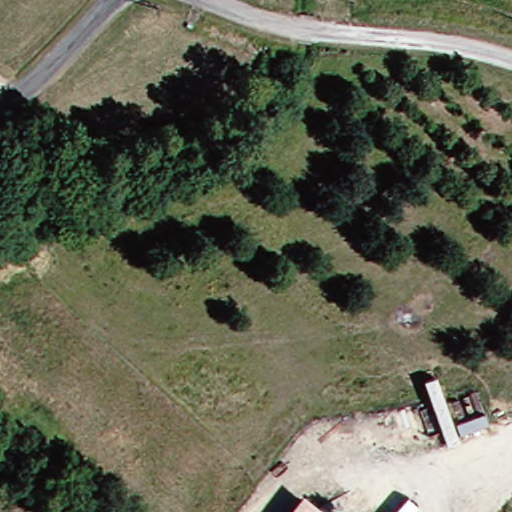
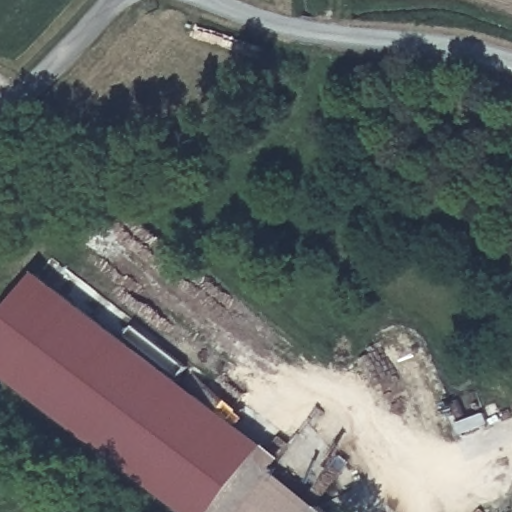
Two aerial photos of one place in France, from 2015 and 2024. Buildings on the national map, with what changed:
new [(255,443),(204,512),(181,512),(0,378),(0,316),(30,275),(255,443)]
new [(280,461),(273,472),(303,494),(290,512),(204,512),(255,443),(280,461)]
new [(327,512),(290,512),(303,494),(327,512)]

